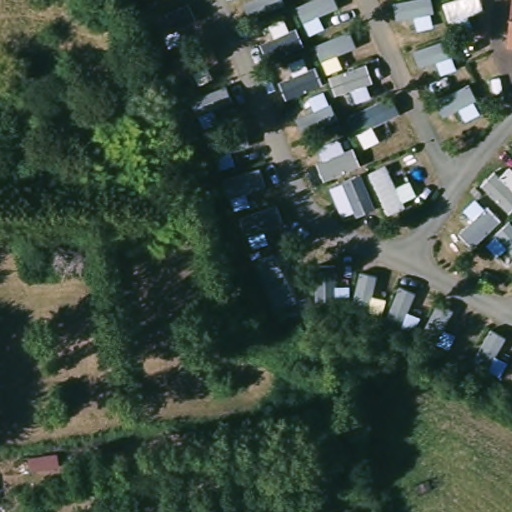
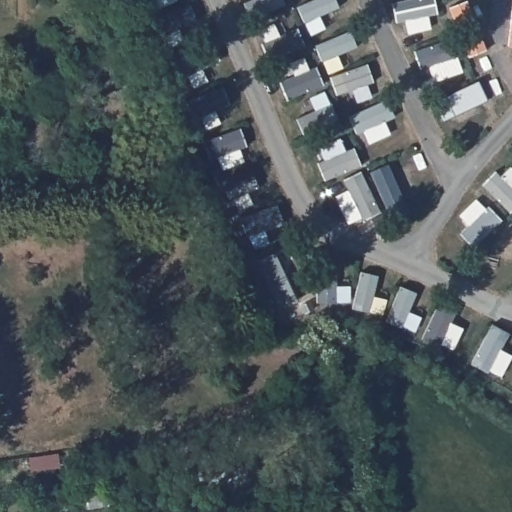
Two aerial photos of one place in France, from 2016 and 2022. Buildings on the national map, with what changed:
unchanged [(512,10),(512,42),(508,42),(512,10)]

